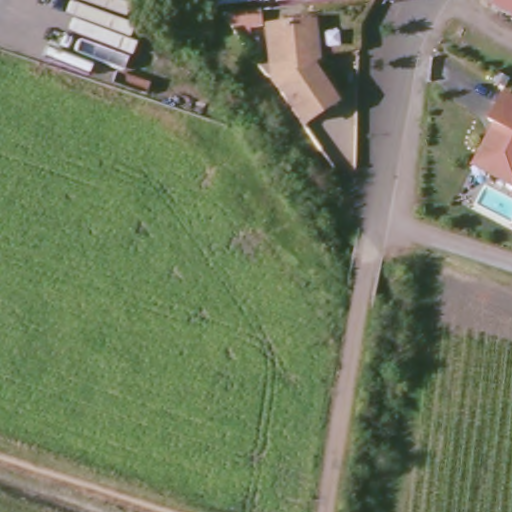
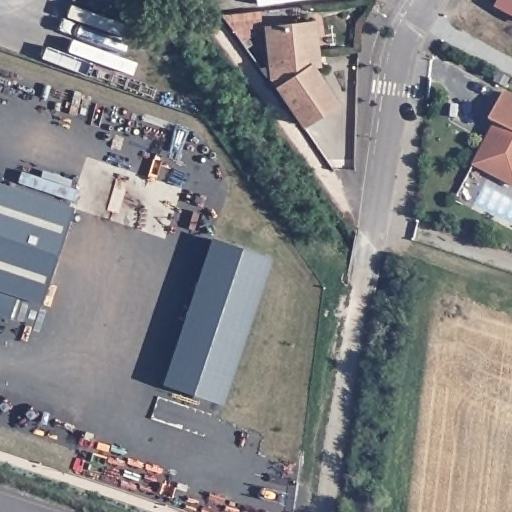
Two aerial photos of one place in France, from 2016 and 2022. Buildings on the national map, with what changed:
unchanged [(489,2),(490,0),(512,0),(512,13),(489,2)]
unchanged [(261,27),(302,25),(310,24),(314,66),(308,70),(331,102),(298,125),(266,81),(261,27)]
unchanged [(483,152),(492,134),(500,137),(504,129),(490,121),(505,94),(512,98),(512,183),(490,173),(476,166),(483,152)]
new [(41,304),(17,296),(9,320),(0,317),(0,183),(73,207),(41,304)]
new [(211,239),(270,257),(222,400),(164,381),(211,239)]

